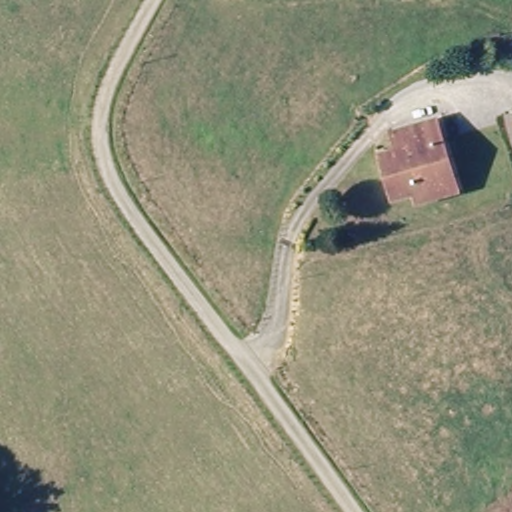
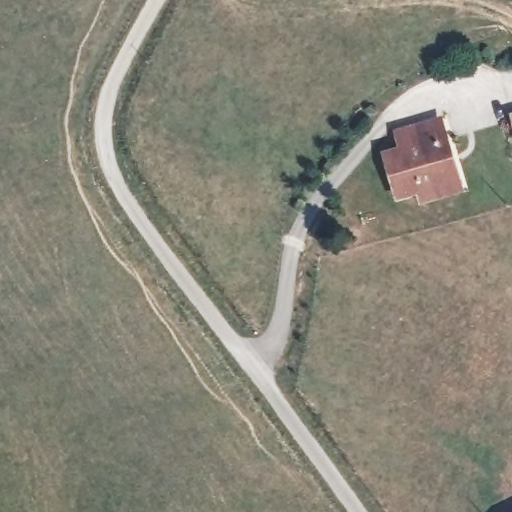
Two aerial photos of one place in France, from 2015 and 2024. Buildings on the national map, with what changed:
unchanged [(431,188),(428,176),(407,182),(397,141),(413,136),(408,118),(445,107),(463,168),(465,177),(431,188)]

